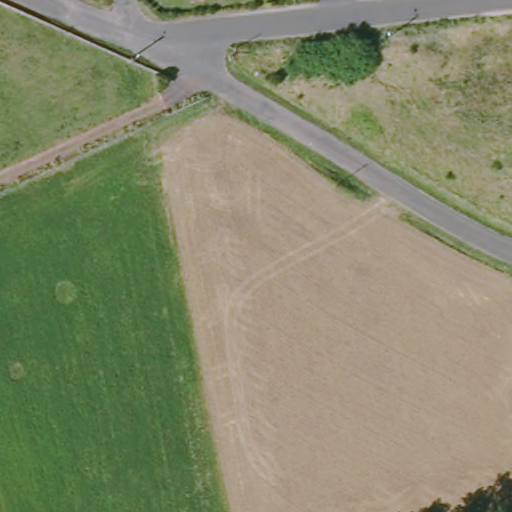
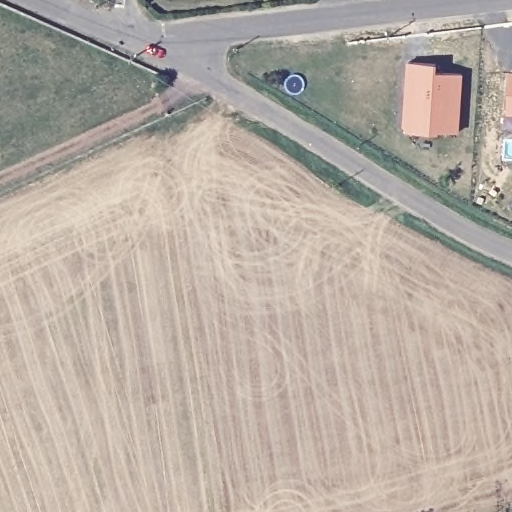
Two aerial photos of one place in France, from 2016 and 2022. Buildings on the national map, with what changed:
new [(437,65),(437,72),(462,74),(460,134),(407,131),(404,127),(407,62),(437,65)]
new [(510,71),(512,71),(512,113),(507,113),(510,71)]

